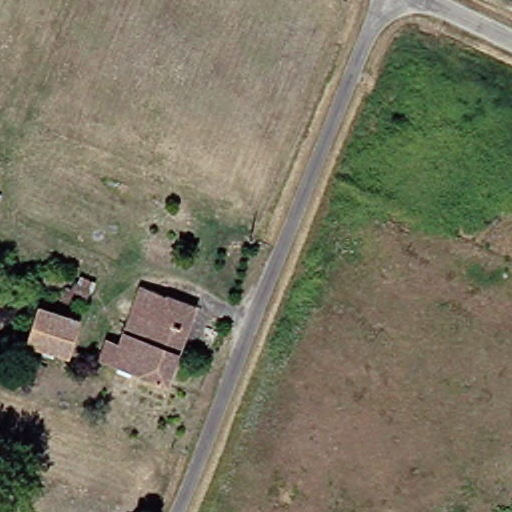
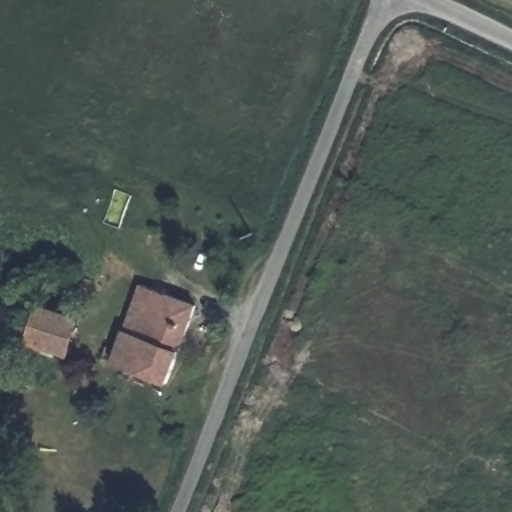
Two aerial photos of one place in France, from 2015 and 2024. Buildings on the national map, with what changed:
unchanged [(94,360),(99,346),(108,349),(131,286),(187,305),(158,383),(94,360)]
unchanged [(25,337),(36,302),(75,314),(64,349),(25,337)]

